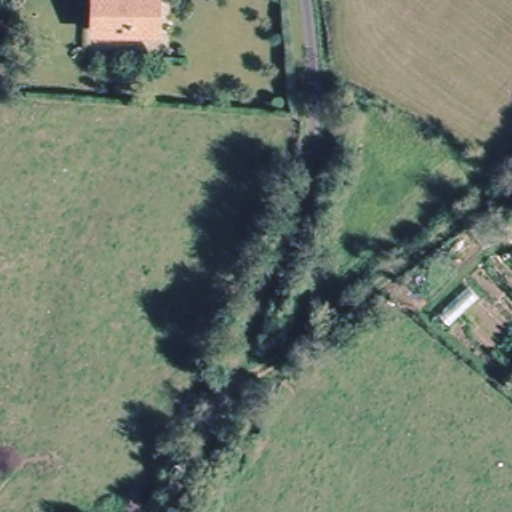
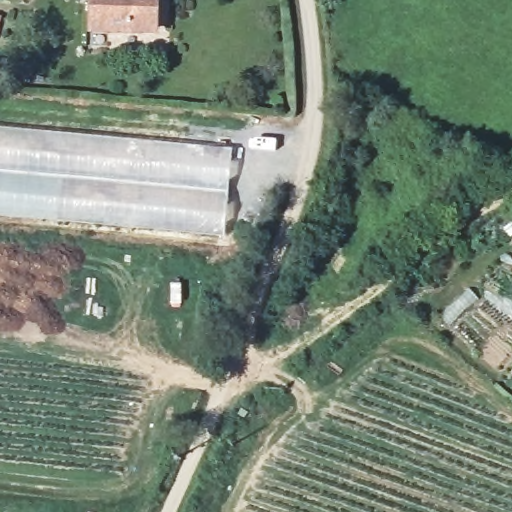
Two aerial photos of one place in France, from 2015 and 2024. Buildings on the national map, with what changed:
unchanged [(154,31),(94,29),(95,0),(155,0),(154,9),(154,31)]
new [(233,146),(224,235),(171,230),(171,223),(163,219),(143,208),(141,210),(135,213),(129,216),(129,226),(39,219),(0,215),(0,124),(171,139),(233,146)]

